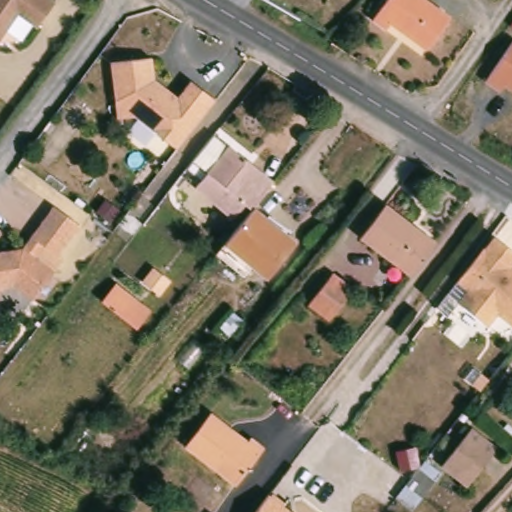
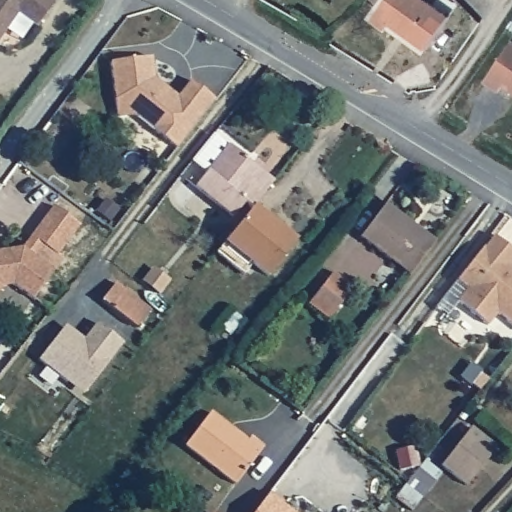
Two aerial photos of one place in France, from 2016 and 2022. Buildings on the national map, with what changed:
unchanged [(0,0),(56,0),(39,25),(29,37),(10,24),(0,38),(0,0)]
unchanged [(450,16),(426,51),(388,26),(386,30),(370,20),(384,0),(426,0),(450,16)]
unchanged [(511,94),(508,96),(499,90),(492,100),(483,91),(512,46),(512,94),(511,94)]
unchanged [(174,145),(132,111),(115,114),(109,59),(150,54),(152,82),(172,98),(189,77),(213,97),(174,145)]
unchanged [(231,219),(193,188),(205,174),(189,160),(207,136),(225,149),(227,146),(246,159),(265,176),(272,182),(250,211),(243,205),(231,219)]
unchanged [(40,245),(31,257),(51,272),(30,300),(10,285),(0,287),(0,251),(20,249),(51,207),(77,226),(55,255),(40,245)]
unchanged [(359,245),(386,210),(432,245),(405,280),(359,245)]
unchanged [(292,244),(266,280),(222,246),(250,211),(292,244)]
unchanged [(495,314),(485,326),(455,302),(465,290),(455,281),(482,248),(482,249),(492,237),(512,253),(512,264),(511,265),(507,268),(512,272),(512,328),(495,314)]
unchanged [(308,291),(332,260),(353,278),(332,305),(308,291)]
unchanged [(136,327),(104,303),(119,283),(150,308),(136,327)]
new [(40,360),(66,326),(84,340),(97,323),(122,343),(82,395),(40,360)]
unchanged [(207,415),(241,441),(246,434),(262,447),(233,487),(182,448),(207,415)]
unchanged [(470,430),(475,425),(501,445),(496,450),(471,482),(445,462),(470,430)]
unchanged [(410,480),(428,457),(445,470),(426,493),(410,480)]
unchanged [(290,512),(254,512),(267,495),(290,512)]

